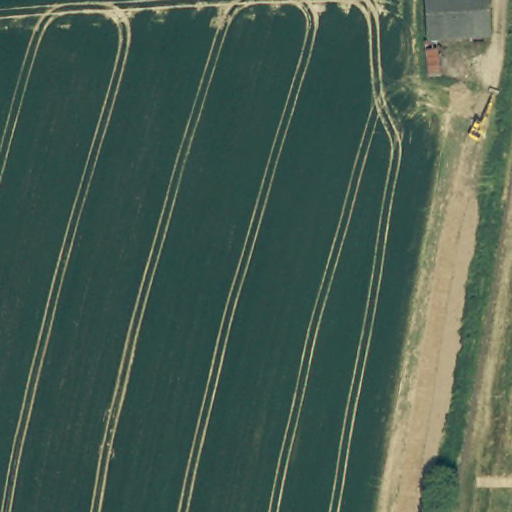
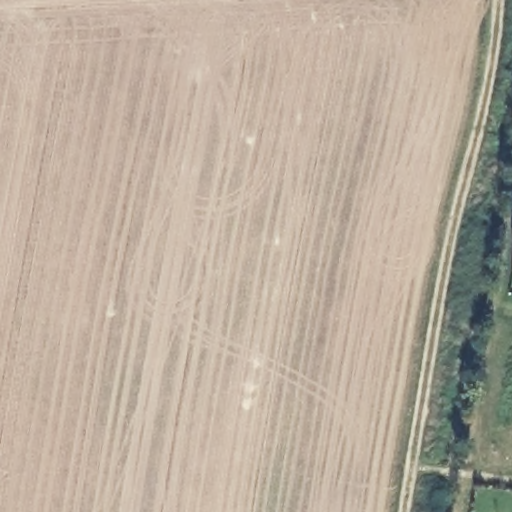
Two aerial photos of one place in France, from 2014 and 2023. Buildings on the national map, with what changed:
demolished [(437,41),(442,73),(427,76),(423,44),(422,0),(486,0),(489,35),(437,41)]

